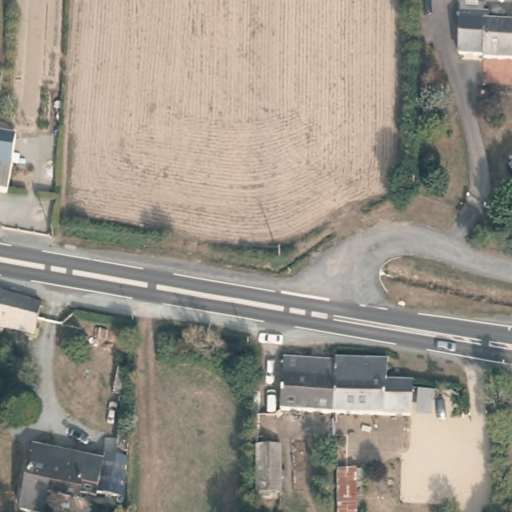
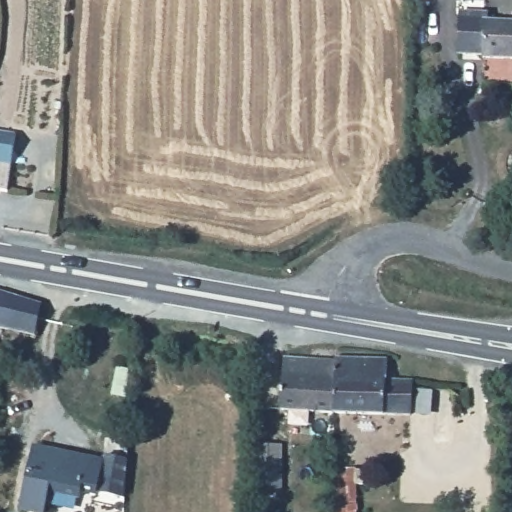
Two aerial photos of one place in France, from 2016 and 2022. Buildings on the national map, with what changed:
unchanged [(463,12),(488,11),(488,20),(512,21),(512,58),(486,57),(483,53),(461,52),(459,51),(463,12)]
unchanged [(6,193),(0,192),(0,131),(15,134),(6,193)]
unchanged [(36,304),(29,335),(0,329),(0,294),(8,295),(36,304)]
unchanged [(340,414),(300,410),(289,408),(292,360),(339,363),(340,414)]
unchanged [(340,414),(339,363),(344,360),(393,362),(418,363),(418,380),(417,414),(340,414)]
unchanged [(259,445),(283,444),(284,489),(258,491),(258,451),(259,445)]
unchanged [(101,492),(51,482),(43,512),(32,512),(24,510),(22,508),(37,446),(105,461),(101,492)]
unchanged [(101,497),(101,492),(105,461),(105,455),(119,455),(129,456),(126,501),(101,497)]
unchanged [(358,512),(342,512),(341,466),(358,465),(358,512)]

